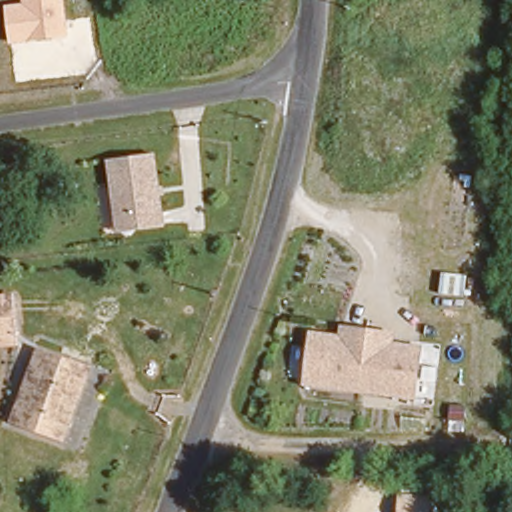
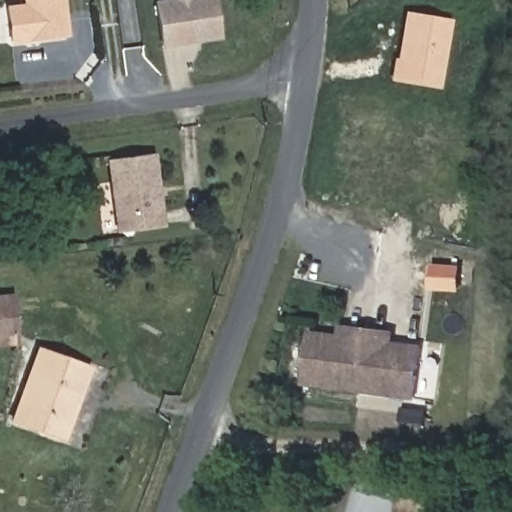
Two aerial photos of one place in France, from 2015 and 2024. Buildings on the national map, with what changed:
unchanged [(10,44),(6,6),(22,4),(22,0),(65,0),(69,36),(10,44)]
new [(222,40),(161,49),(154,1),(157,0),(216,0),(222,40)]
new [(405,11),(441,17),(440,24),(448,25),(437,89),(393,81),(405,11)]
unchanged [(165,227),(117,234),(107,160),(154,153),(165,227)]
unchanged [(13,337),(0,338),(0,299),(10,298),(13,337)]
unchanged [(418,396),(308,385),(313,336),(343,338),(344,328),(351,329),(387,332),(394,333),(393,343),(423,346),(418,396)]
unchanged [(36,350),(86,368),(61,436),(10,417),(36,350)]
new [(422,495),(422,512),(392,512),(392,495),(422,495)]

